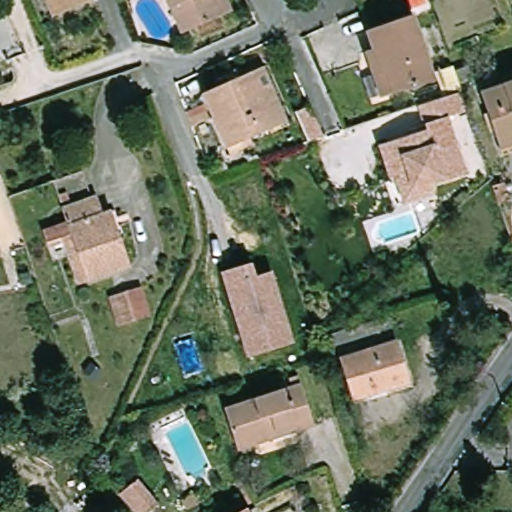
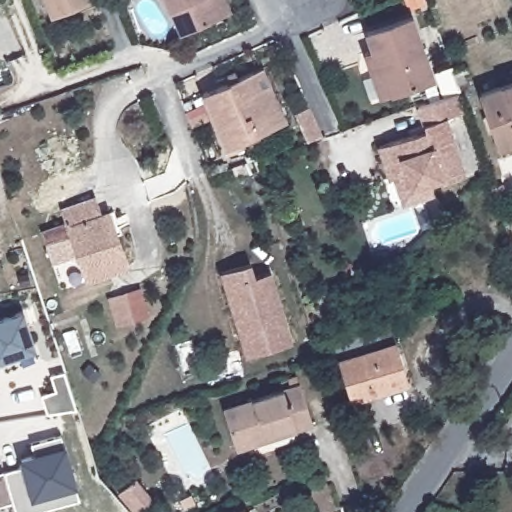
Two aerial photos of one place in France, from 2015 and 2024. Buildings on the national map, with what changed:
unchanged [(56,21),(48,0),(99,0),(100,4),(56,21)]
unchanged [(229,10),(179,30),(166,0),(224,0),(229,10)]
unchanged [(370,51),(376,49),(370,31),(416,15),(438,79),(398,93),(385,97),(370,51)]
unchanged [(200,90),(252,68),(266,62),(289,118),(276,123),(223,145),(200,90)]
unchanged [(482,86),(512,75),(512,143),(504,147),(482,86)]
unchanged [(457,89),(458,92),(464,110),(443,117),(451,142),(462,173),(441,180),(439,176),(409,186),(402,165),(399,155),(390,158),(385,141),(423,128),(415,106),(414,103),(457,89)]
unchanged [(385,141),(390,158),(399,155),(402,165),(409,186),(439,176),(441,180),(445,194),(404,208),(393,175),(387,177),(385,173),(376,144),(385,141)]
unchanged [(65,247),(51,253),(44,234),(68,226),(64,211),(99,199),(105,216),(113,213),(133,271),(89,286),(79,289),(65,247)]
unchanged [(5,257),(0,258),(0,240),(5,257)]
unchanged [(250,265),(254,279),(270,274),(292,345),(247,359),(220,274),(250,265)]
unchanged [(144,286),(153,315),(119,325),(110,296),(144,286)]
new [(25,310),(38,349),(0,361),(0,317),(25,310)]
unchanged [(355,399),(334,332),(379,318),(389,315),(398,340),(411,382),(355,399)]
unchanged [(298,383),(310,424),(234,449),(222,408),(298,383)]
new [(21,466),(19,458),(35,453),(32,443),(62,435),(64,444),(66,443),(78,486),(76,487),(79,499),(30,512),(15,512),(12,501),(0,504),(0,472),(21,466)]
unchanged [(130,478),(150,502),(137,512),(127,512),(111,493),(130,478)]
unchanged [(178,509),(173,499),(185,493),(189,503),(178,509)]
new [(247,512),(243,512),(246,511),(247,512)]

